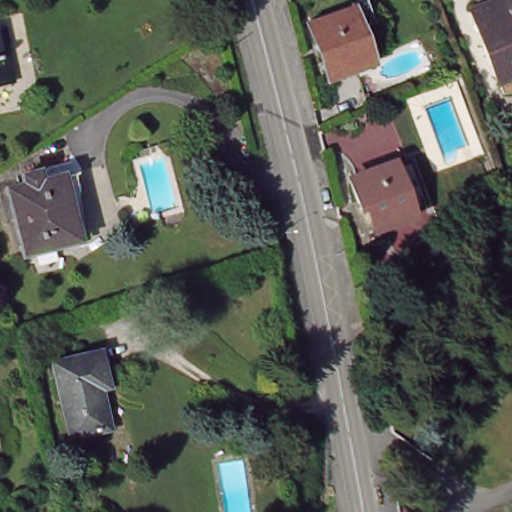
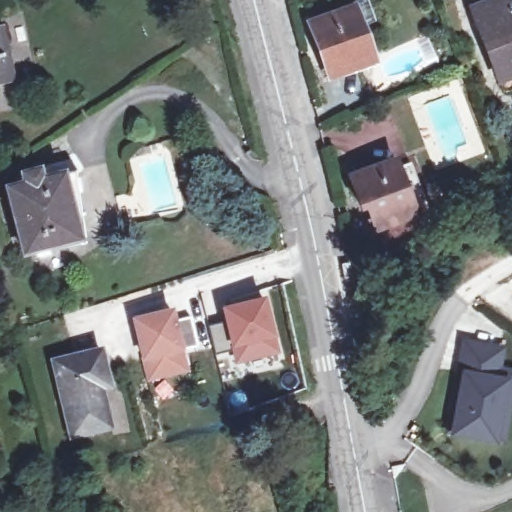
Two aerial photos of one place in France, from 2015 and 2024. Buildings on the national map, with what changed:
unchanged [(473,6),(482,3),(481,1),(483,0),(512,0),(512,72),(496,79),(469,8),(473,6)]
unchanged [(332,75),(313,24),(355,8),(375,60),(332,75)]
unchanged [(0,83),(0,35),(10,81),(0,83)]
unchanged [(378,226),(360,176),(396,163),(415,213),(378,226)]
unchanged [(25,179),(38,175),(41,184),(63,179),(80,241),(23,256),(9,193),(26,188),(25,179)]
new [(224,320),(221,306),(265,296),(276,338),(273,338),(277,354),(232,366),(228,349),(215,355),(207,326),(224,320)]
new [(198,348),(183,351),(190,371),(147,382),(141,362),(131,318),(174,307),(175,318),(191,317),(198,348)]
new [(496,444),(450,438),(459,371),(462,341),(505,347),(501,368),(512,370),(512,405),(505,445),(496,444)]
unchanged [(110,384),(100,387),(101,395),(103,395),(110,426),(72,435),(55,361),(101,350),(110,384)]

